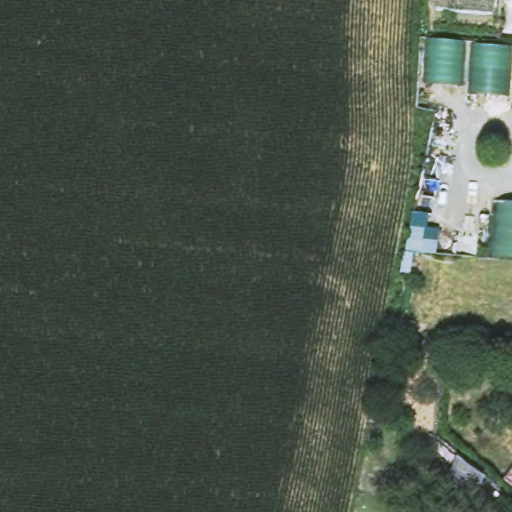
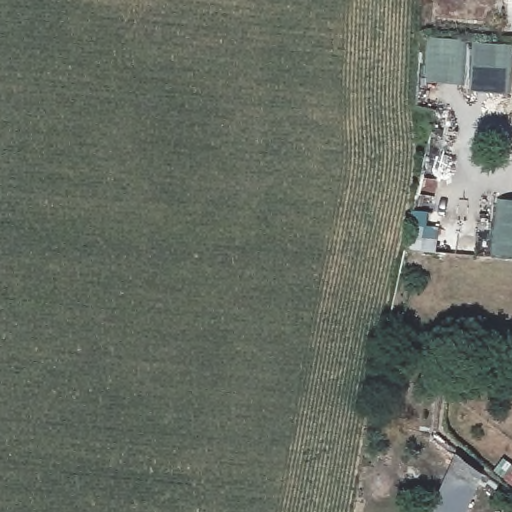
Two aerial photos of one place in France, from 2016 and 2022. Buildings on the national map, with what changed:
unchanged [(509,44),(506,96),(466,94),(467,83),(425,81),(427,39),(509,44)]
unchanged [(502,194),(512,195),(512,254),(494,252),(502,194)]
unchanged [(411,237),(438,237),(436,251),(420,250),(415,270),(401,268),(411,237)]
unchanged [(489,476),(478,496),(447,476),(459,457),(489,476)]

